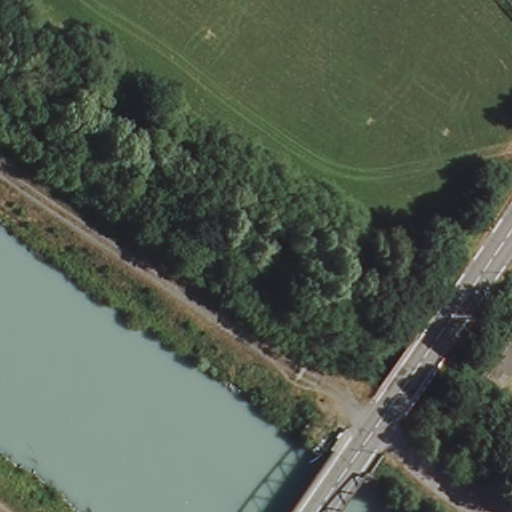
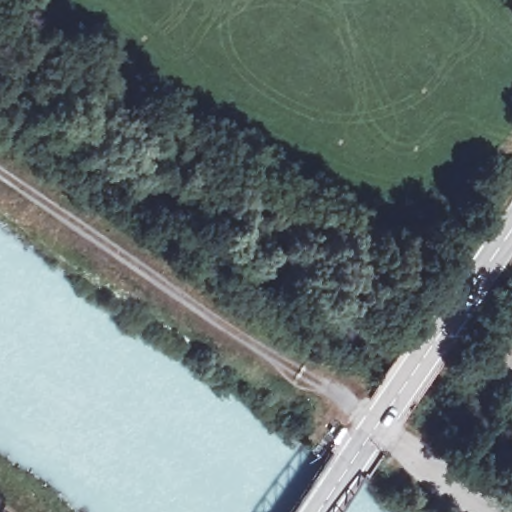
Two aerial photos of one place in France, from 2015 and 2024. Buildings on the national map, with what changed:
[]

